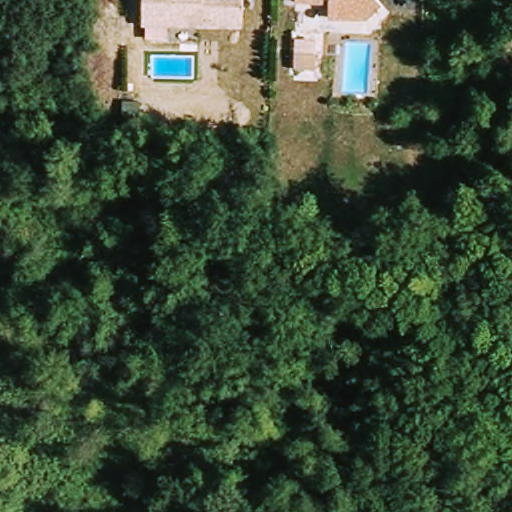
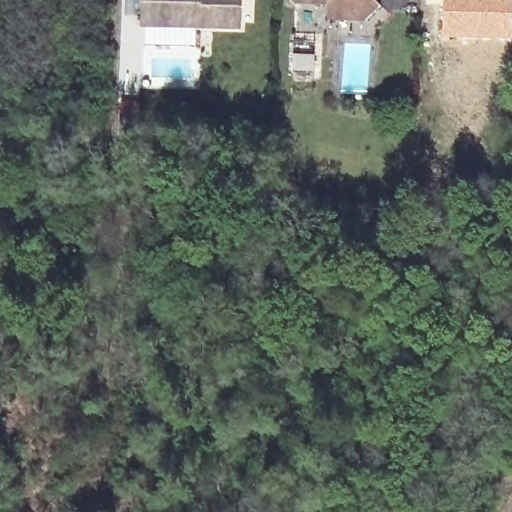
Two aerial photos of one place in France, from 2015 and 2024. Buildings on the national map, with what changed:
unchanged [(246,31),(146,29),(147,0),(247,0),(246,31)]
unchanged [(329,4),(296,3),(296,0),(375,0),(383,9),(383,22),(341,20),(329,20),(329,7),(329,4)]
new [(444,39),(444,0),(512,0),(512,42),(444,39)]
unchanged [(115,79),(133,80),(133,96),(115,95),(115,79)]

